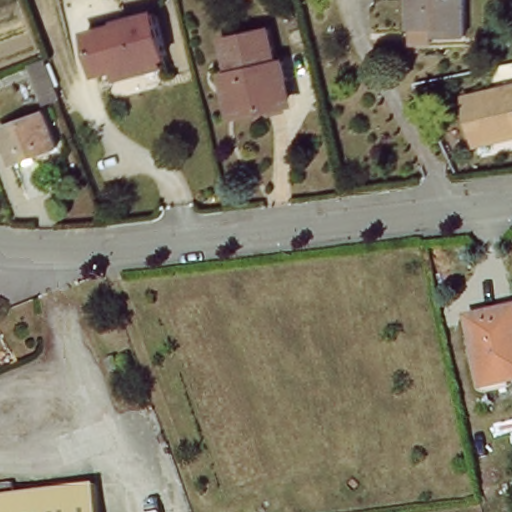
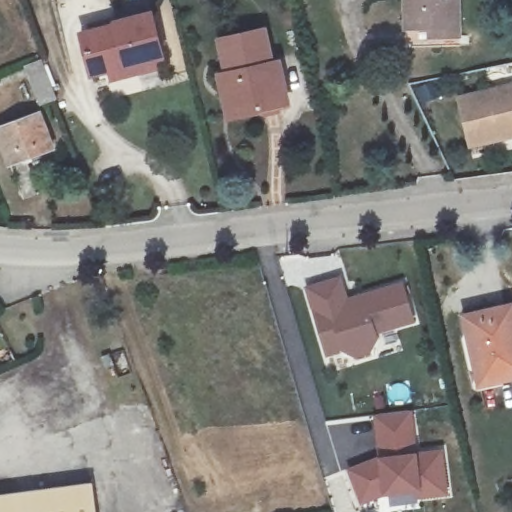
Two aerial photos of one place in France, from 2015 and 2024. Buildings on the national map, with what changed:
unchanged [(463,41),(431,40),(430,32),(401,32),(401,0),(464,0),(463,41)]
unchanged [(109,80),(106,72),(88,77),(76,37),(111,26),(110,24),(146,14),(159,57),(150,59),(153,67),(109,80)]
unchanged [(270,61),(277,60),(282,80),(275,82),(281,107),(258,112),(257,107),(242,111),(236,87),(229,89),(216,37),(261,26),(270,61)]
unchanged [(55,106),(35,114),(31,105),(21,77),(41,70),(52,97),(53,100),(55,106)]
unchanged [(512,86),(512,139),(467,151),(456,101),(512,86)]
unchanged [(49,156),(7,171),(0,154),(0,132),(34,120),(49,156)]
new [(382,332),(373,353),(354,358),(345,352),(327,357),(307,286),(342,275),(349,298),(405,283),(417,322),(382,332)]
unchanged [(468,313),(512,303),(512,374),(483,379),(468,313)]
new [(380,457),(375,416),(415,411),(419,452),(446,450),(451,496),(418,499),(415,492),(385,496),(362,507),(347,469),(380,457)]
unchanged [(0,512),(0,493),(95,483),(98,512),(0,512)]

